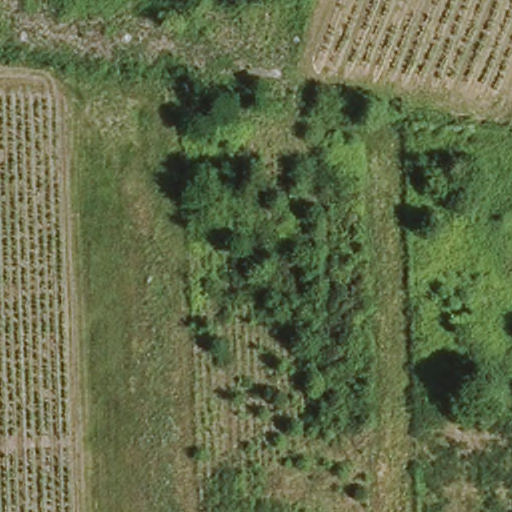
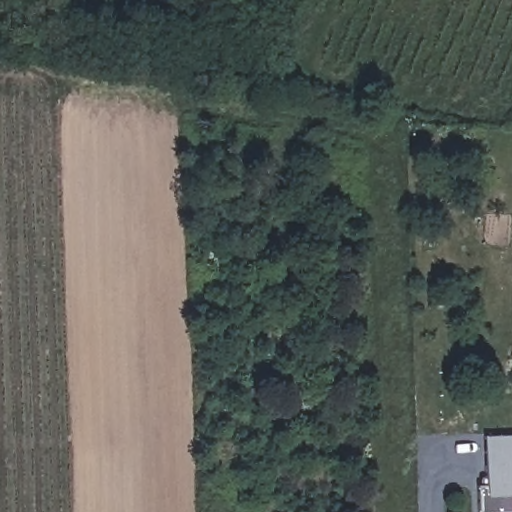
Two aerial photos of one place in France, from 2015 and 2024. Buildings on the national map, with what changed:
new [(485,485),(483,437),(512,436),(512,512),(478,512),(477,486),(485,485)]

